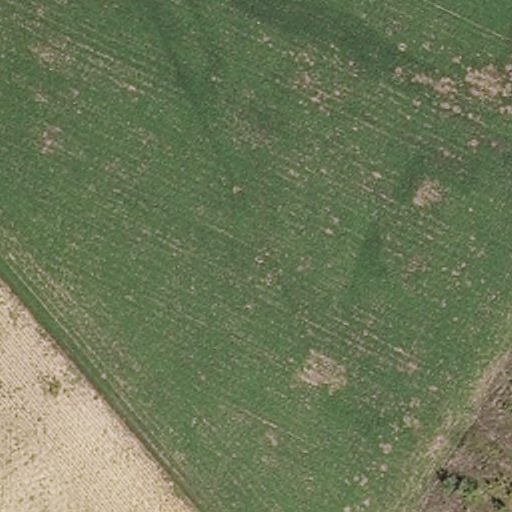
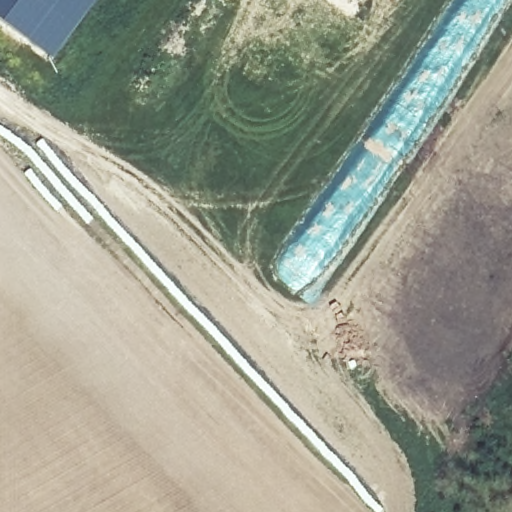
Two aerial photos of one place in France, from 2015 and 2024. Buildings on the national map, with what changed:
new [(0,20),(0,0),(15,0),(0,20)]
new [(51,59),(0,21),(0,20),(15,0),(96,0),(51,59)]

